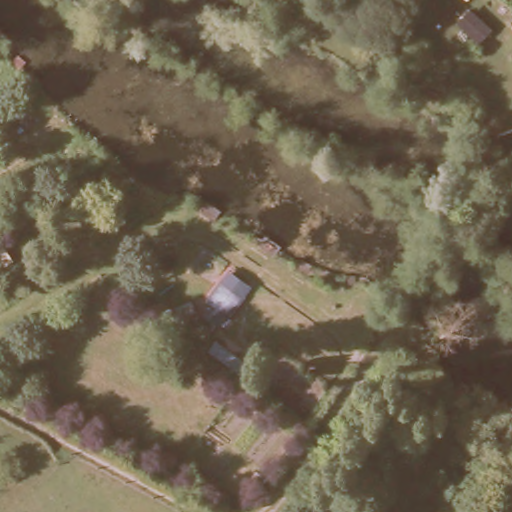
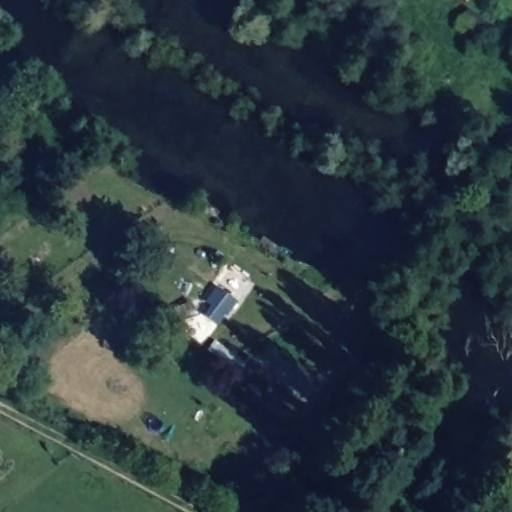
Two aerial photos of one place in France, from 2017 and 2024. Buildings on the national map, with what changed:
unchanged [(202,300),(217,278),(238,293),(224,317),(202,300)]

